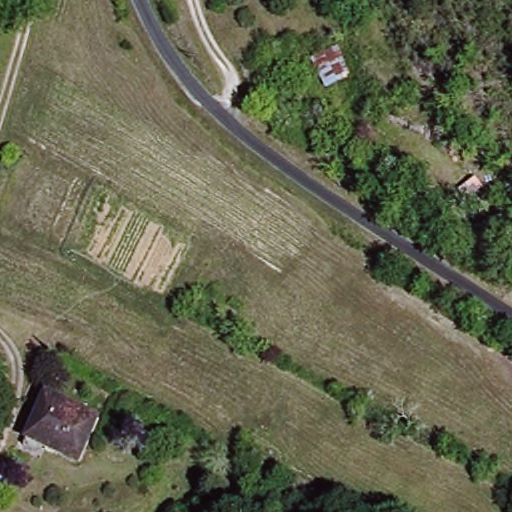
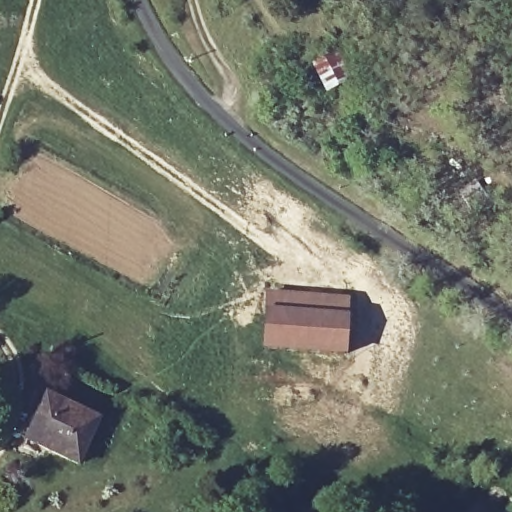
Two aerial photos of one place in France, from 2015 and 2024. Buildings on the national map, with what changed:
new [(350,296),(347,354),(261,349),(265,290),(350,296)]
unchanged [(44,399),(95,424),(74,466),(22,441),(44,399)]

